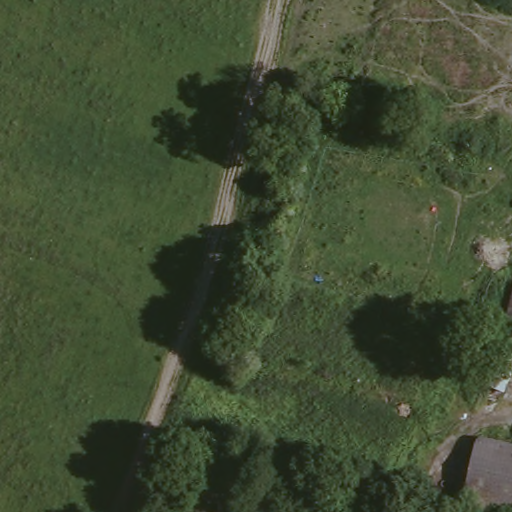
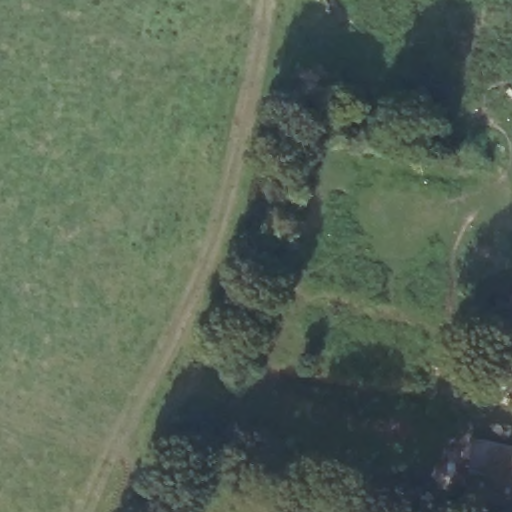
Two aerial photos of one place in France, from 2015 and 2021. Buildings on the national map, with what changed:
unchanged [(506,321),(512,300),(512,323),(506,321)]
unchanged [(478,441),(512,449),(512,512),(476,512),(456,507),(471,439),(478,441)]

